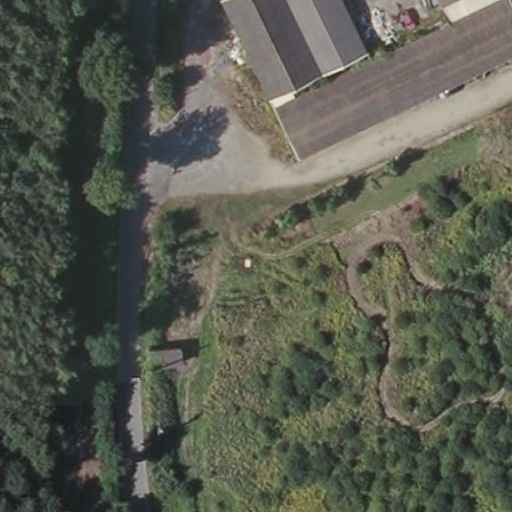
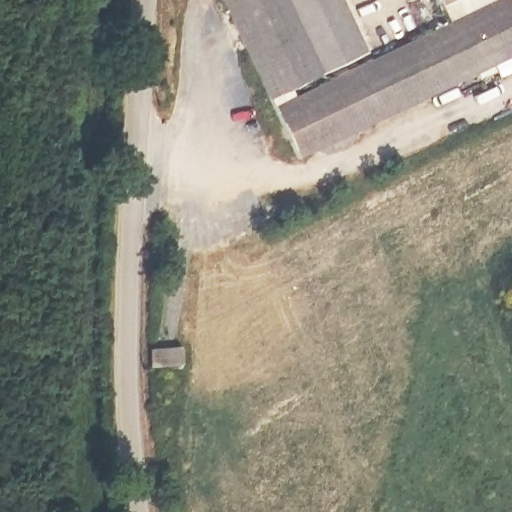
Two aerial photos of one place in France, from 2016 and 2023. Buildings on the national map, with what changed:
unchanged [(367,53),(294,90),(297,97),(489,0),(512,0),(512,50),(304,156),(224,0),(340,0),(367,53)]
unchanged [(441,1),(440,0),(443,0),(441,1)]
unchanged [(152,344),(181,345),(181,362),(151,362),(152,344)]

